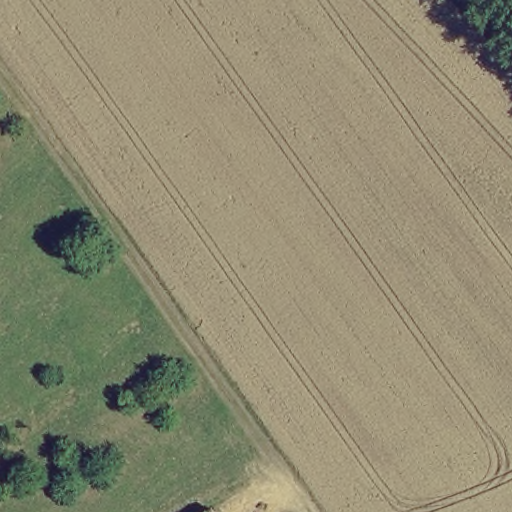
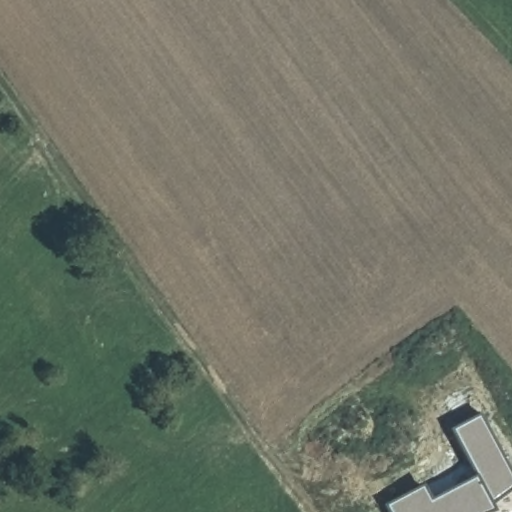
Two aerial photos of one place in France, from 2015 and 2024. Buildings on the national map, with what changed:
new [(480,415),(512,474),(512,490),(491,504),(477,477),(450,429),(480,415)]
new [(425,485),(434,501),(477,477),(491,504),(495,511),(493,512),(389,512),(386,507),(425,485)]

